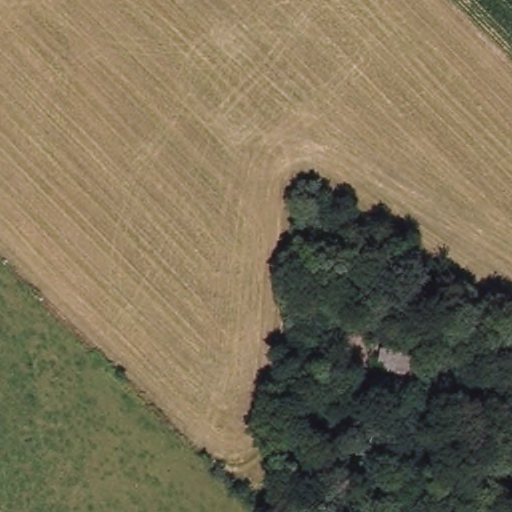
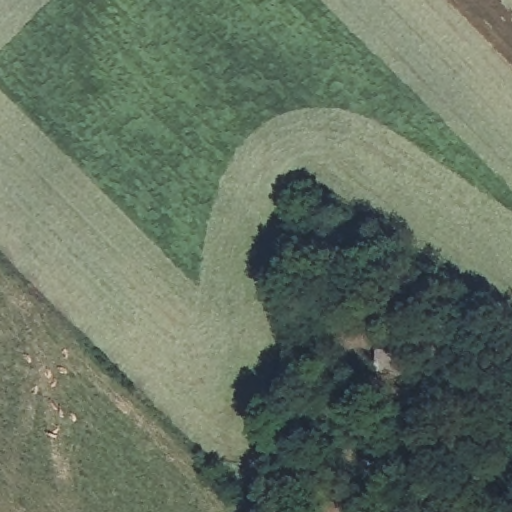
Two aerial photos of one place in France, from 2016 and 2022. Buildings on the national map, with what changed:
unchanged [(427,354),(422,382),(372,376),(377,347),(427,354)]

